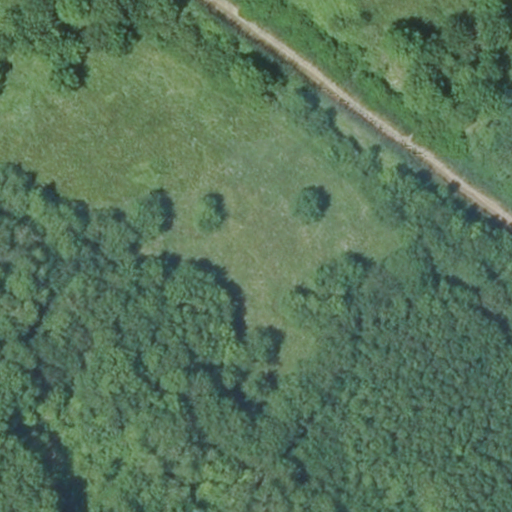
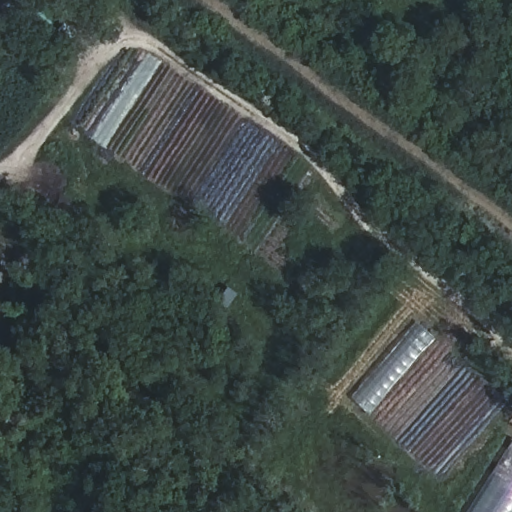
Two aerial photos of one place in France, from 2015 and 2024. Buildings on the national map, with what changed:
new [(512,512),(469,512),(512,444),(512,512)]

